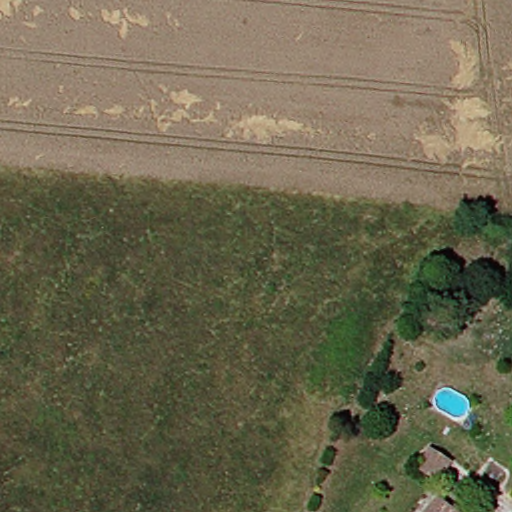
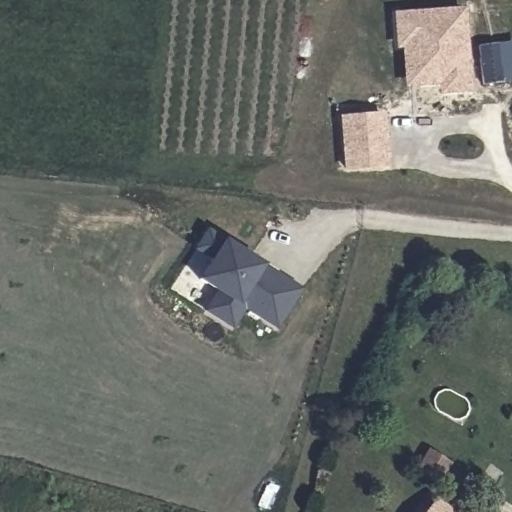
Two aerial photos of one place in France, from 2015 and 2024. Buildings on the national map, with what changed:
new [(401,48),(396,48),(393,12),(466,7),(471,93),(439,95),(438,84),(405,86),(401,48)]
new [(475,46),(512,41),(512,81),(481,85),(475,46)]
new [(390,168),(344,171),(339,115),(386,112),(390,168)]
new [(276,330),(244,309),(232,329),(202,310),(213,291),(196,280),(209,261),(191,249),(206,227),(222,239),(223,236),(265,263),(263,266),(300,288),(276,330)]
unchanged [(428,471),(410,461),(418,443),(437,452),(428,471)]
unchanged [(426,504),(437,512),(421,512),(426,504)]

